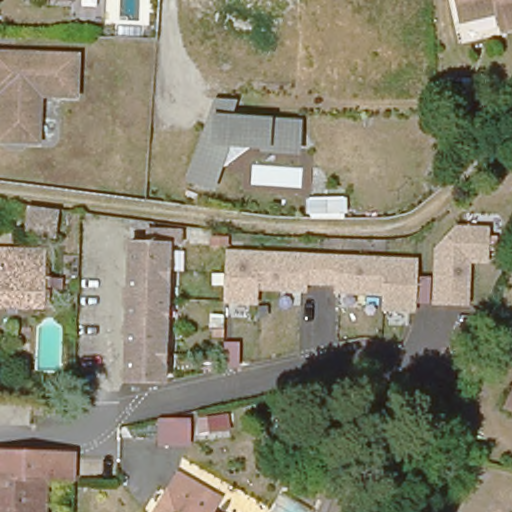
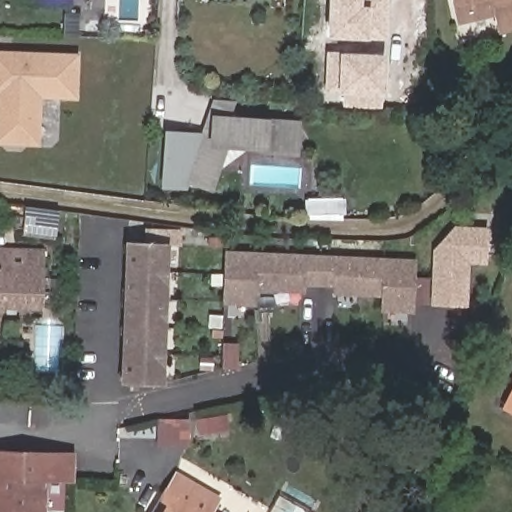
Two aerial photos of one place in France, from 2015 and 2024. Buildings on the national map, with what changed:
new [(385,35),(370,32),(369,39),(327,36),(329,0),(387,0),(385,35)]
unchanged [(454,0),(512,0),(512,29),(498,32),(493,14),(458,21),(454,0)]
new [(343,51),(340,52),(387,54),(386,95),(378,96),(381,107),(342,107),(338,92),(338,90),(326,92),(327,51),(343,51)]
unchanged [(4,94),(0,93),(0,54),(76,56),(75,95),(40,94),(40,140),(0,139),(0,106),(2,104),(4,94)]
unchanged [(225,146),(220,167),(214,193),(185,184),(215,97),(236,104),(232,115),(297,120),(297,155),(225,146)]
new [(202,134),(185,184),(186,185),(185,188),(162,187),(166,131),(202,134)]
new [(305,197),(345,197),(345,214),(305,212),(305,197)]
unchanged [(53,232),(26,230),(30,207),(56,210),(53,232)]
unchanged [(416,259),(417,273),(431,275),(432,251),(456,225),(488,225),(490,263),(470,262),(470,308),(415,306),(415,312),(382,312),(382,296),(333,295),(334,291),(261,288),(259,306),(224,304),(224,251),(416,259)]
unchanged [(172,244),(165,382),(120,379),(124,238),(143,240),(145,226),(183,226),(184,245),(172,244)]
unchanged [(41,305),(0,304),(0,250),(46,251),(41,305)]
unchanged [(503,412),(512,392),(512,416),(503,412)]
new [(161,446),(164,420),(186,422),(185,447),(161,446)]
unchanged [(77,486),(47,486),(48,473),(0,473),(0,453),(78,453),(77,486)]
unchanged [(47,486),(46,512),(0,512),(0,473),(48,473),(47,486)]
unchanged [(168,477),(210,501),(204,512),(186,512),(157,495),(168,477)]
unchanged [(148,512),(157,495),(186,512),(148,512)]

